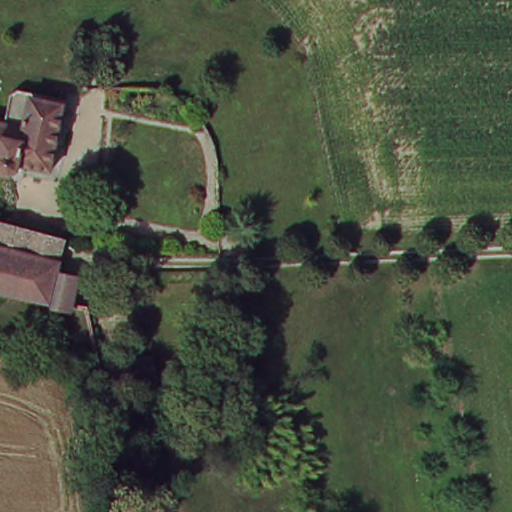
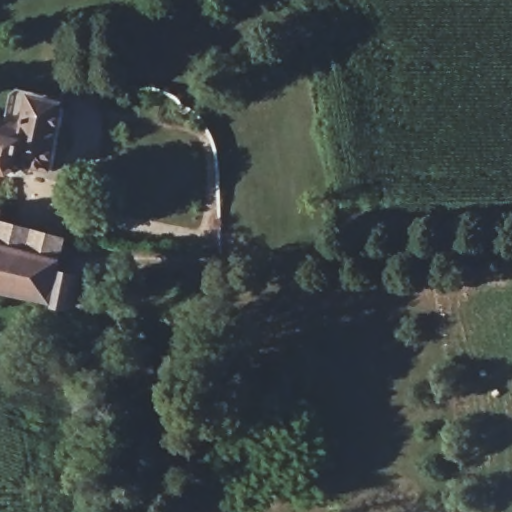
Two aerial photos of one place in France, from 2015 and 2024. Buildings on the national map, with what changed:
unchanged [(2,88),(50,100),(37,172),(0,165),(0,98),(2,88)]
unchanged [(68,234),(60,268),(80,274),(72,310),(46,304),(57,262),(0,249),(0,219),(68,234)]
unchanged [(46,304),(0,293),(0,249),(57,262),(46,304)]

